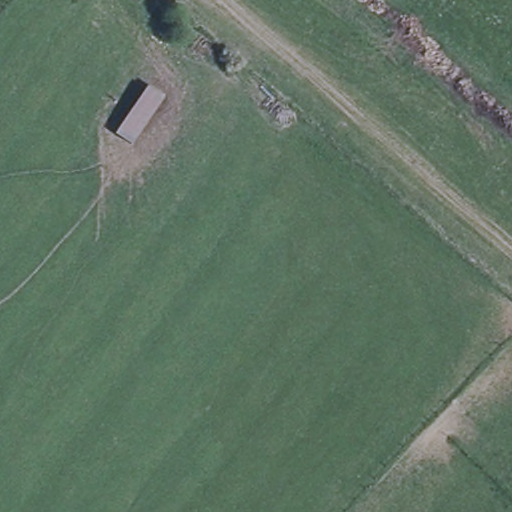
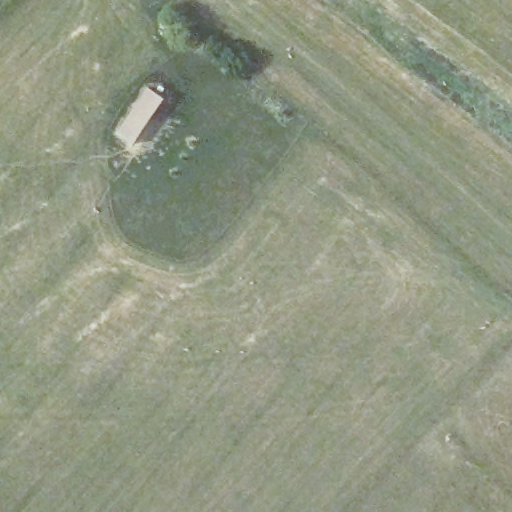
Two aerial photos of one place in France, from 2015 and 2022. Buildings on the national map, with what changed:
unchanged [(147,86),(164,96),(131,143),(113,134),(147,86)]

